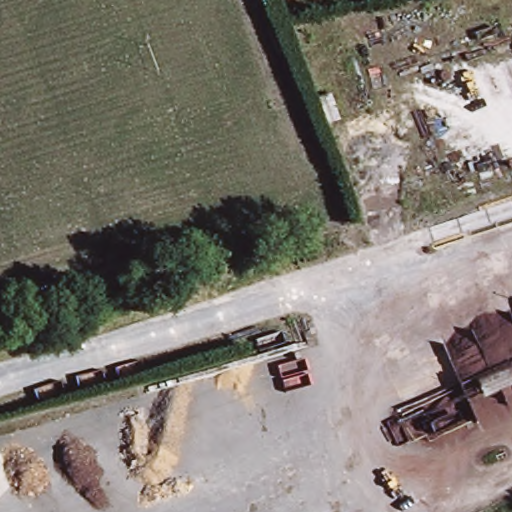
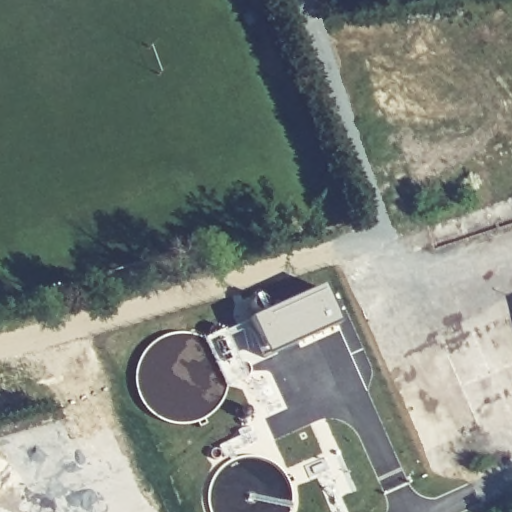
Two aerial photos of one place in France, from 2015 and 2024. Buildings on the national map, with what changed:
new [(320,285),(337,325),(263,358),(244,320),(320,285)]

